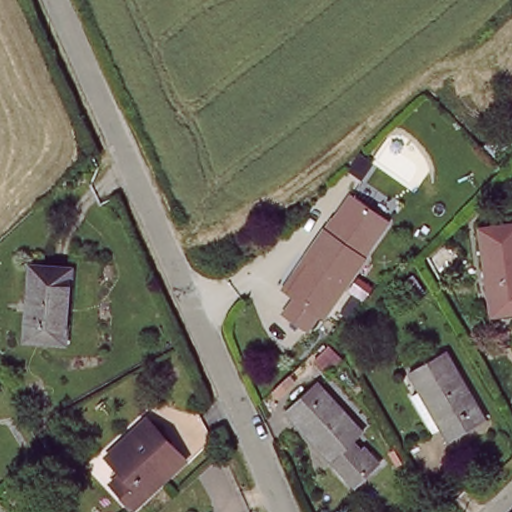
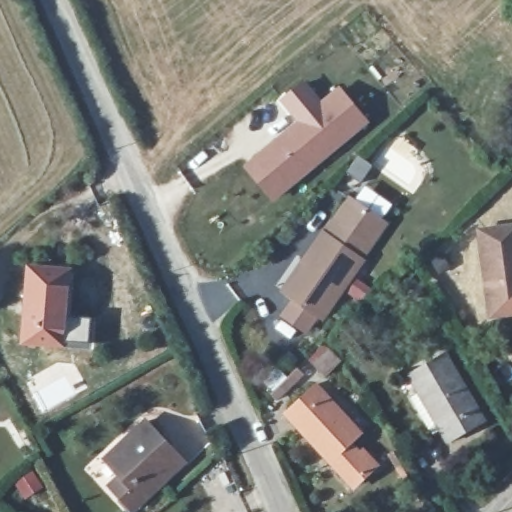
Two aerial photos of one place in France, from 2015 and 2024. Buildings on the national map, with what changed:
new [(297,121),(281,101),(304,80),(321,100),(338,86),(370,121),(274,202),(244,166),(297,121)]
unchanged [(337,217),(329,211),(339,195),(382,221),(374,240),(337,217)]
unchanged [(305,254),(324,228),(327,230),(337,217),(371,240),(361,254),(363,255),(322,313),(288,289),(283,286),(305,254)]
unchanged [(487,303),(477,228),(512,223),(512,310),(510,310),(488,313),(487,303)]
unchanged [(50,344),(17,339),(27,266),(67,271),(62,304),(57,345),(50,344)]
unchanged [(314,335),(280,319),(291,298),(322,321),(314,335)]
unchanged [(432,429),(411,395),(419,390),(407,371),(440,349),(481,417),(448,438),(440,425),(432,429)]
unchanged [(327,466),(332,461),(282,412),(310,383),(359,433),(350,442),(358,450),(362,446),(377,461),(354,484),(350,488),(327,466)]
unchanged [(122,476),(104,455),(144,419),(172,450),(184,463),(164,482),(133,509),(122,496),(112,485),(122,476)]

